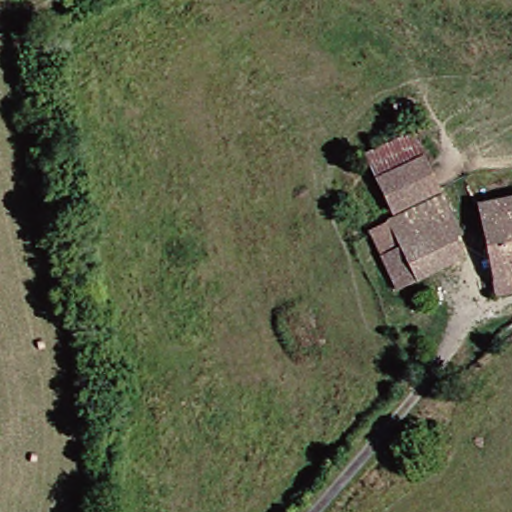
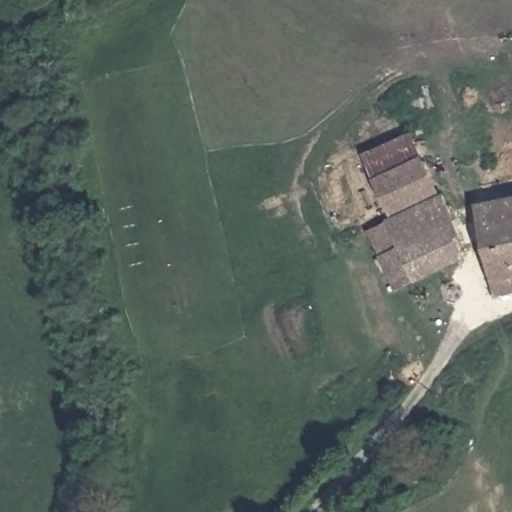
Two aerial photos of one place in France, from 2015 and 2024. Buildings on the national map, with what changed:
unchanged [(414,160),(374,185),(358,159),(401,135),(414,160)]
unchanged [(414,160),(431,190),(391,217),(374,185),(414,160)]
unchanged [(375,238),(434,196),(461,241),(455,248),(463,264),(396,304),(376,269),(362,247),(375,238)]
unchanged [(485,284),(471,211),(512,203),(512,295),(489,300),(485,284)]

